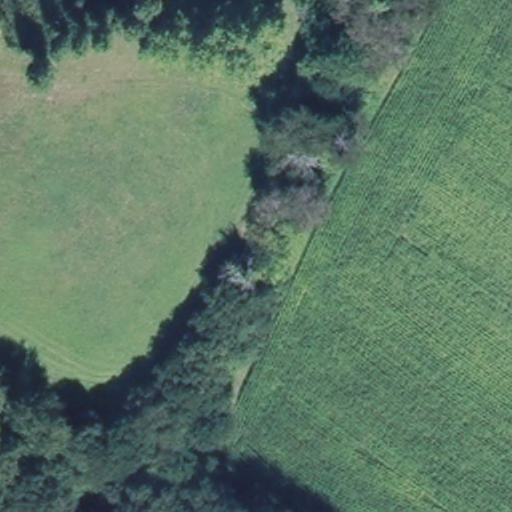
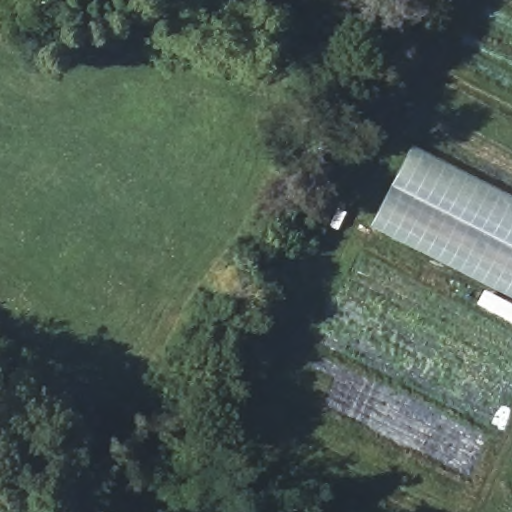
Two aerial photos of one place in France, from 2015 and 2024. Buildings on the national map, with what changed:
new [(370,226),(412,144),(512,196),(512,298),(370,226)]

